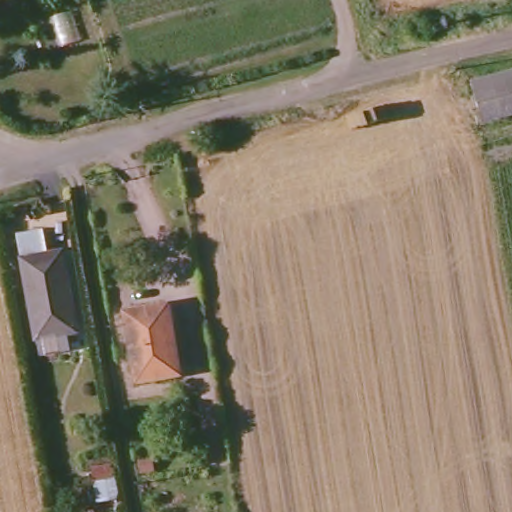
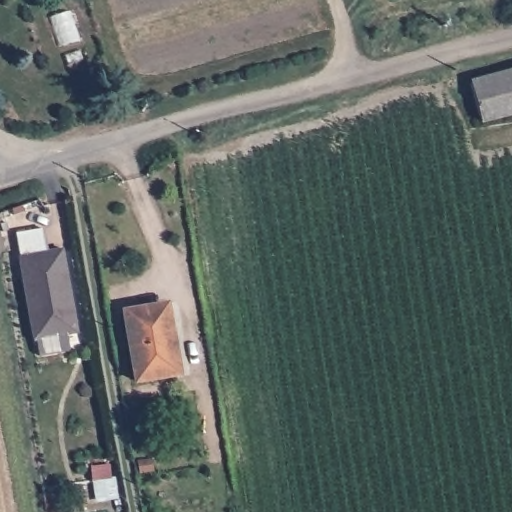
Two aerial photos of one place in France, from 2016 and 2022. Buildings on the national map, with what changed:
unchanged [(485,120),(475,78),(512,69),(512,113),(485,120)]
unchanged [(43,348),(38,328),(19,232),(38,227),(43,252),(62,249),(76,322),(66,323),(70,343),(43,348)]
unchanged [(168,308),(181,374),(141,382),(128,316),(168,308)]

